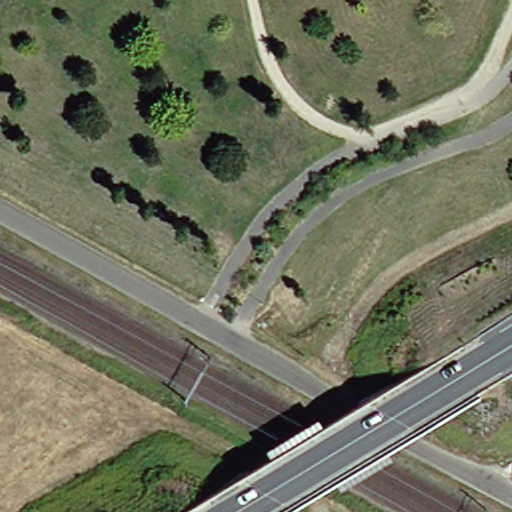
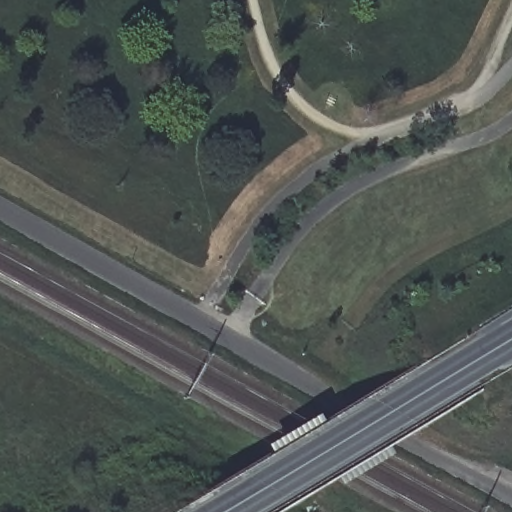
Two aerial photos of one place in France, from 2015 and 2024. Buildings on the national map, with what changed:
[]

